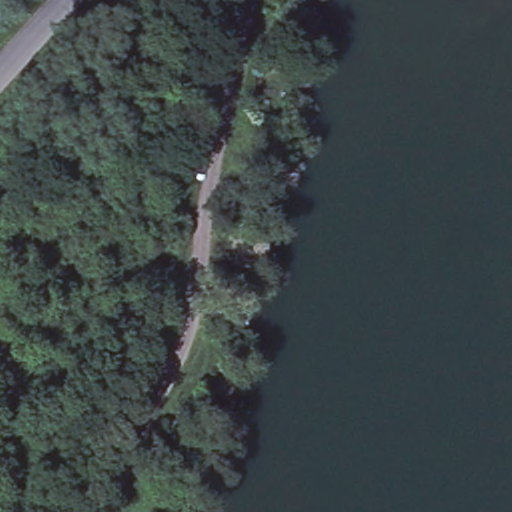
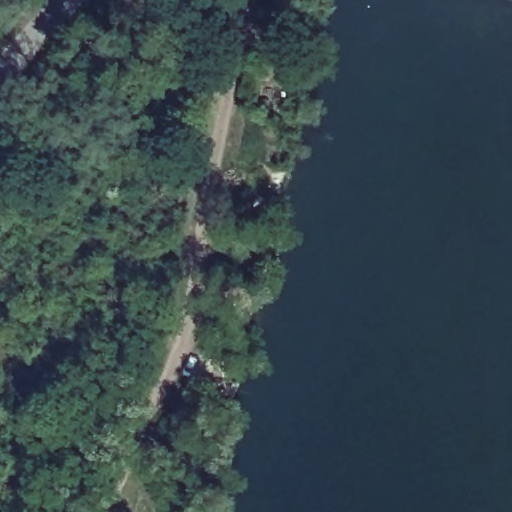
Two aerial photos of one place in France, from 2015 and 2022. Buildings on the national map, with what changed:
unchanged [(284,58),(284,95),(264,97),(265,56),(284,58)]
unchanged [(297,164),(296,183),(283,183),(285,162),(297,164)]

